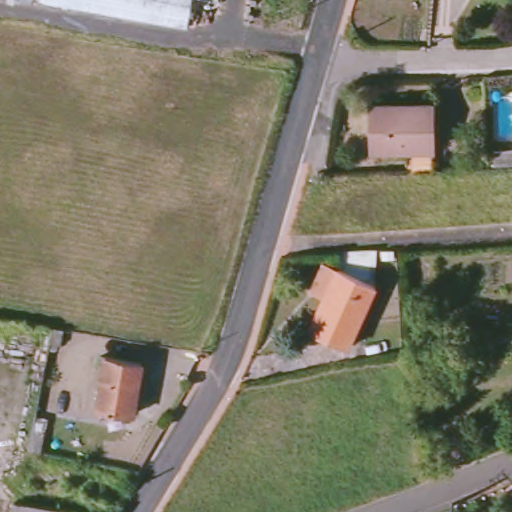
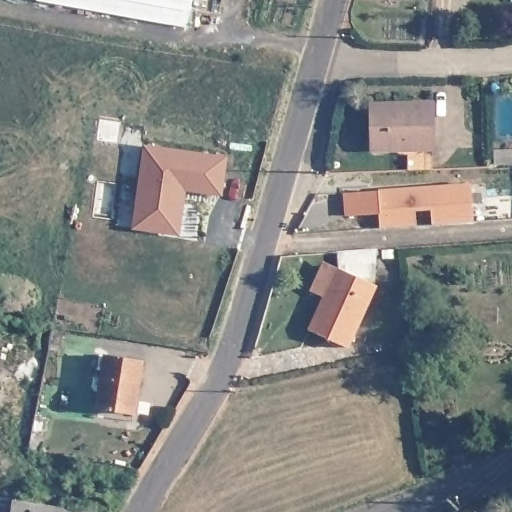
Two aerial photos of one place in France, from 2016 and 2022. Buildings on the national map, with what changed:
unchanged [(194,27),(35,0),(198,0),(194,27)]
unchanged [(371,131),(370,106),(433,104),(434,129),(371,131)]
unchanged [(437,171),(410,172),(409,150),(373,152),(371,131),(434,129),(437,171)]
new [(144,146),(226,157),(223,195),(186,190),(180,235),(132,230),(144,146)]
unchanged [(511,156),(511,168),(485,168),(486,156),(511,156)]
new [(433,224),(431,209),(415,211),(415,225),(379,228),(379,211),(345,215),(344,193),(470,183),(473,221),(433,224)]
unchanged [(308,341),(328,294),(309,287),(324,259),(339,266),(344,255),(390,252),(373,294),(347,357),(308,341)]
unchanged [(141,367),(134,419),(98,413),(105,362),(141,367)]
unchanged [(70,512),(16,512),(17,504),(39,507),(70,512)]

